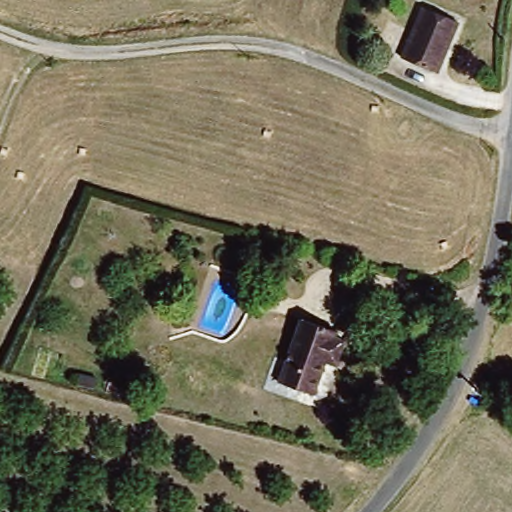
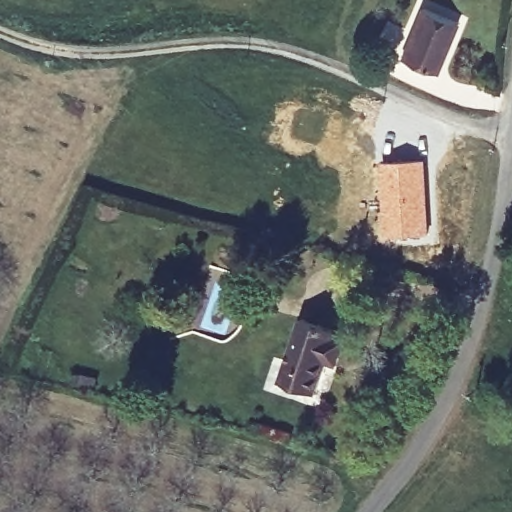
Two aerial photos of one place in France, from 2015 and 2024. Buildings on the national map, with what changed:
unchanged [(458,45),(452,43),(439,69),(410,56),(432,7),(467,24),(458,45)]
new [(427,159),(431,236),(383,239),(376,162),(427,159)]
unchanged [(279,381),(306,317),(342,332),(339,337),(352,342),(341,369),(329,363),(316,396),(279,381)]

